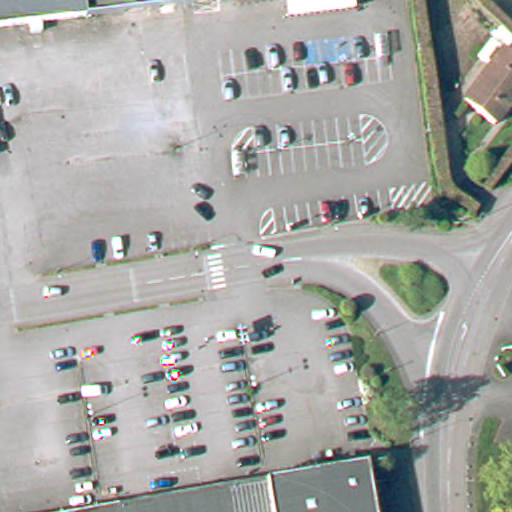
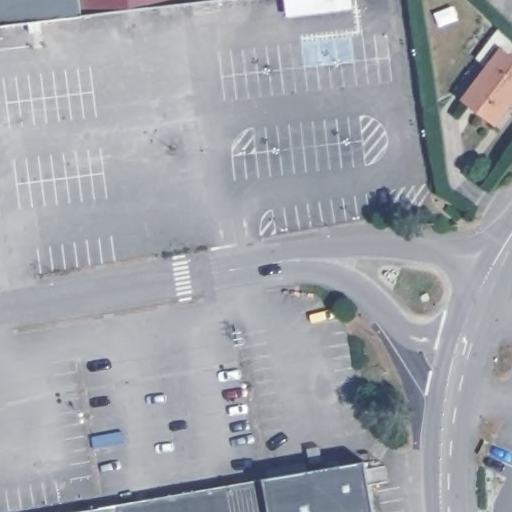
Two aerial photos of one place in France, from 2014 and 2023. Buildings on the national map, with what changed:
unchanged [(186,4),(88,16),(38,22),(39,32),(30,33),(29,23),(0,27),(0,0),(185,0),(186,4)]
unchanged [(185,0),(218,0),(186,4),(185,0)]
unchanged [(512,104),(495,127),(464,103),(504,50),(512,56),(512,104)]
unchanged [(374,462),(382,512),(268,512),(263,481),(374,462)]
unchanged [(263,481),(268,512),(80,512),(88,511),(263,481)]

